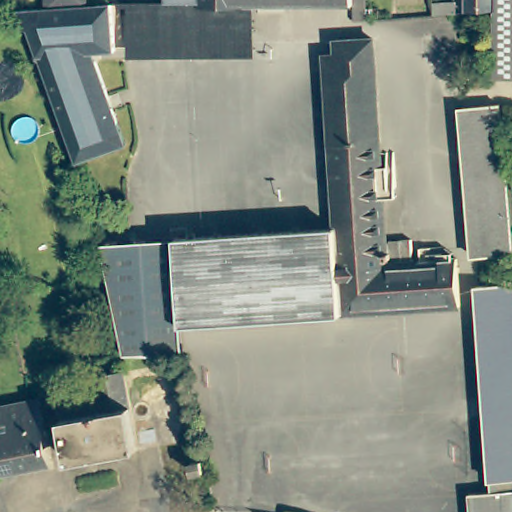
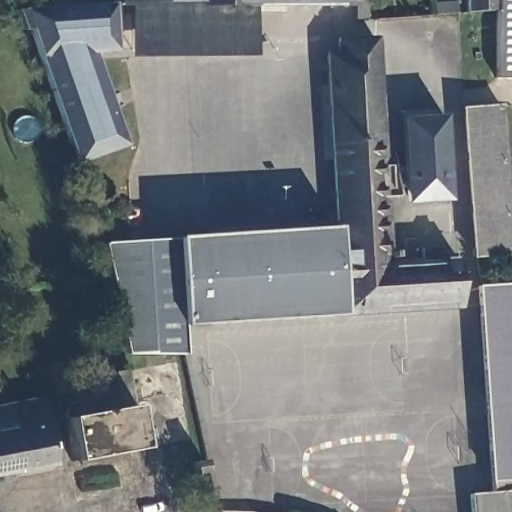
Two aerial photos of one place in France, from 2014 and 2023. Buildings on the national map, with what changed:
unchanged [(85,4),(106,2),(110,2),(110,4),(112,30),(113,50),(93,52),(115,115),(116,123),(116,130),(114,136),(106,145),(100,148),(91,150),(85,150),(80,148),(76,146),(73,144),(71,141),(69,139),(65,131),(47,84),(37,59),(25,30),(21,30),(16,14),(15,10),(28,6),(28,0),(86,0),(85,4)]
unchanged [(365,20),(353,21),(353,4),(255,5),(166,5),(166,2),(166,0),(364,0),(365,20)]
unchanged [(500,10),(470,12),(470,0),(500,0),(500,10)]
unchanged [(512,78),(500,77),(500,10),(500,0),(512,0),(512,78)]
unchanged [(255,50),(160,50),(128,50),(127,3),(166,2),(166,5),(255,5),(255,50)]
unchanged [(460,3),(461,14),(439,15),(438,5),(460,3)]
unchanged [(336,228),(326,55),(338,55),(337,41),(373,40),(386,252),(390,252),(389,241),(410,240),(412,261),(457,258),(460,305),(181,323),(176,238),(336,228)]
unchanged [(510,254),(475,257),(462,107),(498,105),(510,254)]
new [(442,118),(447,203),(403,206),(398,121),(442,118)]
unchanged [(176,238),(181,323),(184,353),(125,354),(102,243),(130,241),(131,241),(176,238)]
unchanged [(512,283),(512,387),(484,384),(477,285),(512,283)]
unchanged [(72,471),(70,461),(62,418),(65,406),(80,398),(97,395),(94,376),(126,371),(139,448),(110,454),(112,465),(72,471)]
unchanged [(484,384),(512,387),(512,441),(488,447),(484,384)]
unchanged [(27,401),(40,399),(52,464),(0,474),(0,407),(27,401)]
unchanged [(491,491),(488,447),(512,441),(512,512),(470,512),(468,493),(491,491)]

